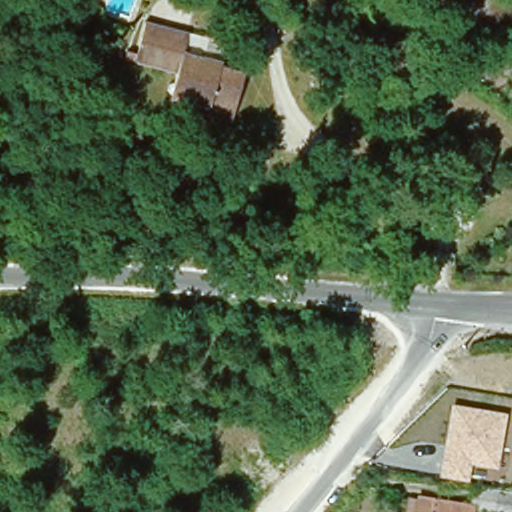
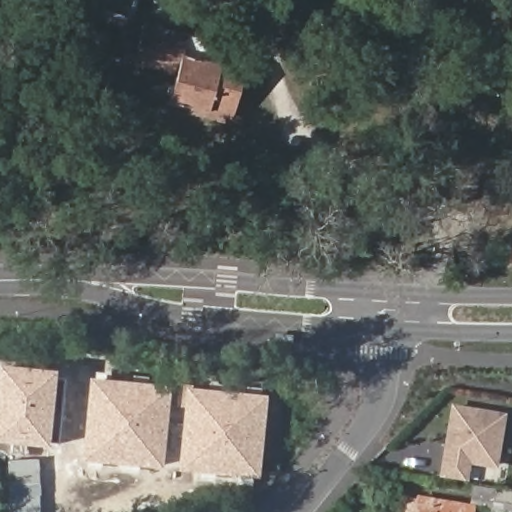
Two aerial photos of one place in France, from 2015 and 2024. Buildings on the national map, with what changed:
unchanged [(199,115),(175,108),(180,86),(139,74),(151,31),(195,44),(232,54),(227,70),(225,76),(255,84),(245,121),(230,130),(219,126),(197,121),(199,115)]
new [(0,442),(0,366),(55,372),(49,447),(0,442)]
new [(161,468),(80,459),(89,379),(170,388),(265,397),(259,478),(177,472),(181,434),(165,433),(161,468)]
unchanged [(497,469),(471,465),(468,481),(440,477),(451,403),(508,412),(497,469)]
unchanged [(492,509),(496,484),(512,487),(512,512),(508,512),(492,509)]
unchanged [(415,494),(475,506),(473,512),(411,512),(415,494)]

